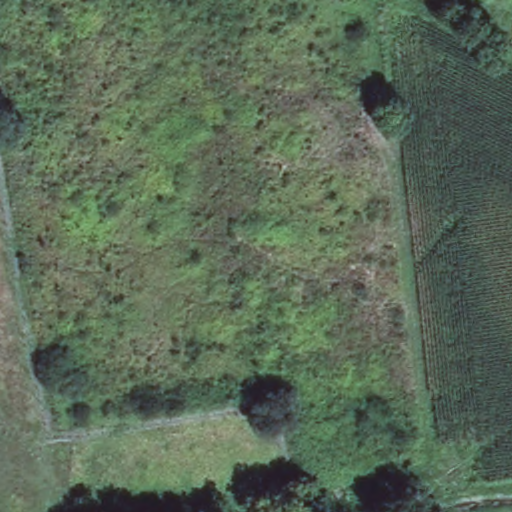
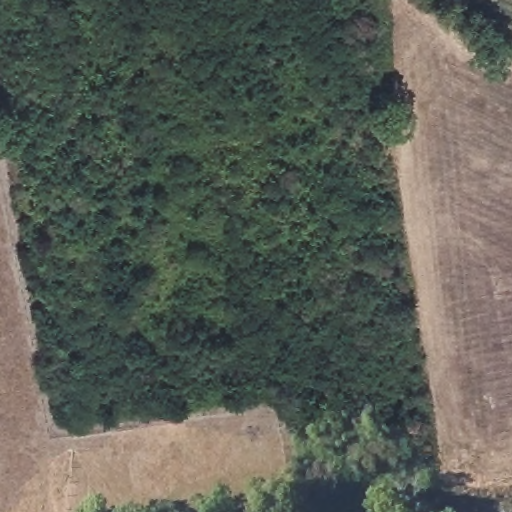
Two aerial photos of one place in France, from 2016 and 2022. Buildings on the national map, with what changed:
[]

